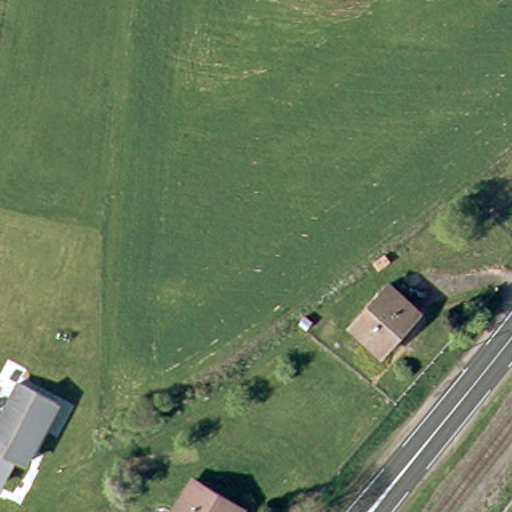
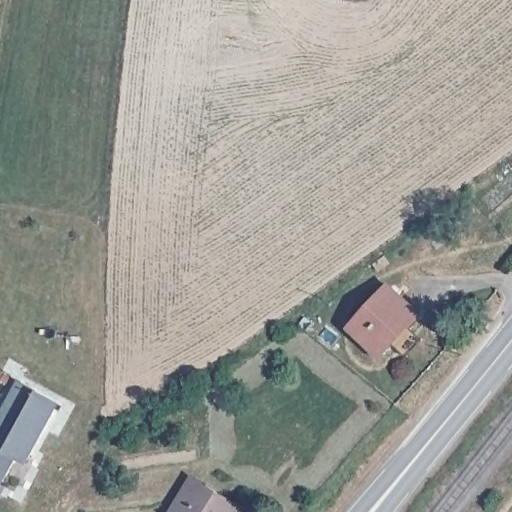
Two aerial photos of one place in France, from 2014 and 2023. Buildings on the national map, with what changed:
unchanged [(382,353),(352,325),(389,284),(419,312),(382,353)]
unchanged [(307,328),(300,323),(305,317),(312,322),(307,328)]
unchanged [(0,478),(0,416),(20,379),(57,399),(26,459),(16,454),(15,457),(6,473),(2,479),(0,478)]
unchanged [(239,512),(174,512),(192,479),(205,486),(242,506),(239,512)]

